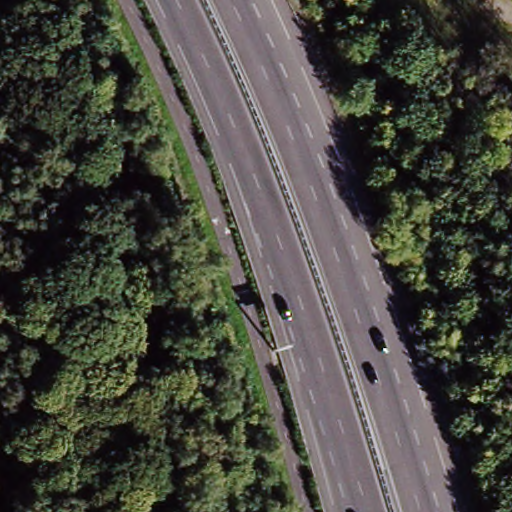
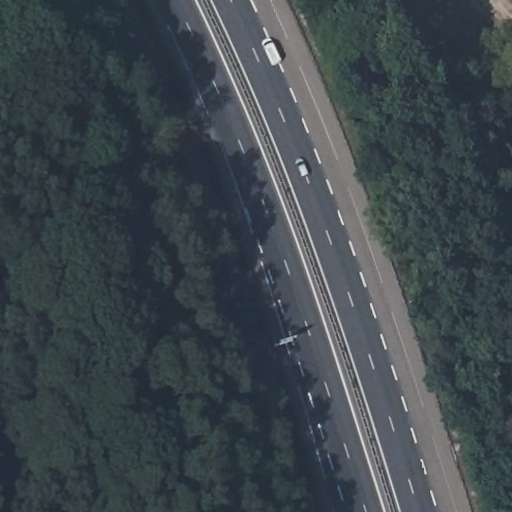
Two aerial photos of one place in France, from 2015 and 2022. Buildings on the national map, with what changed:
unchanged [(484,25),(474,34),(464,22),(473,14),(484,25)]

